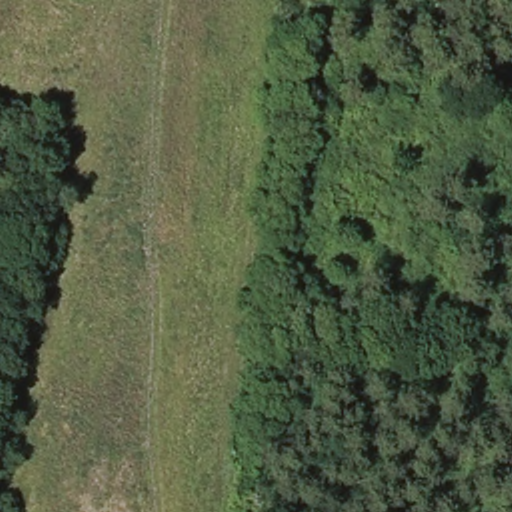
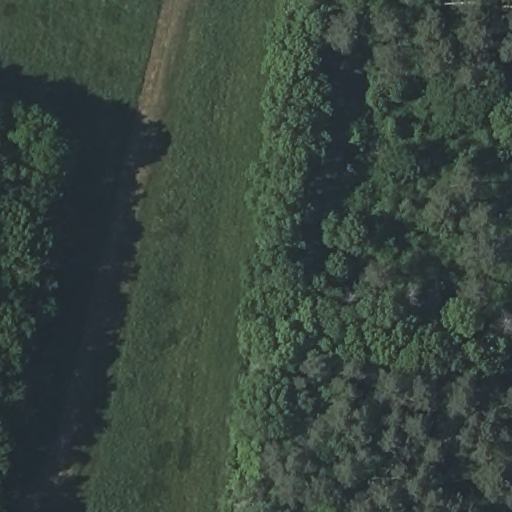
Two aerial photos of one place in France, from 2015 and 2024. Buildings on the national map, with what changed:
[]

